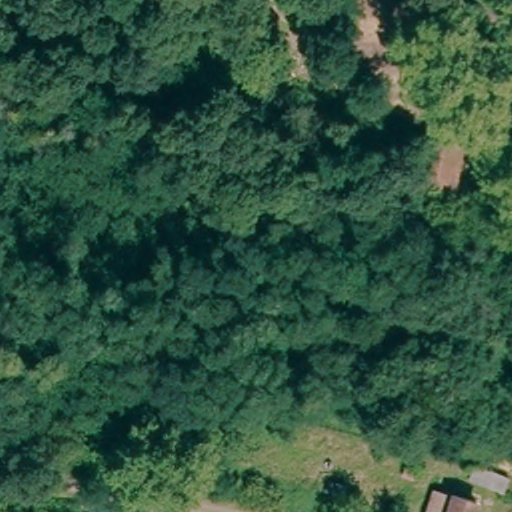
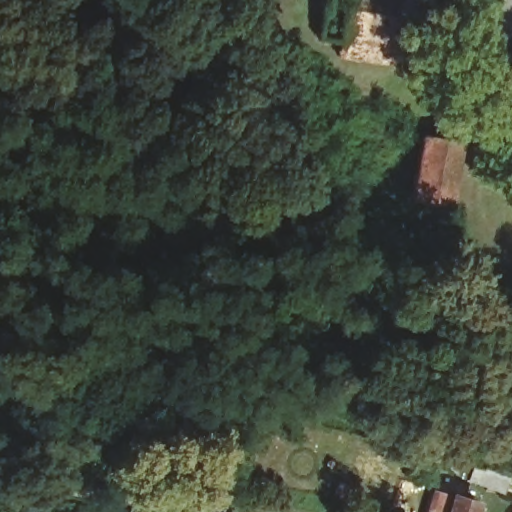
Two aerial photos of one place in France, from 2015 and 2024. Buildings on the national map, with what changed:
unchanged [(297,25),(330,29),(336,0),(412,0),(411,8),(405,67),(343,64),(324,52),(287,48),(297,25)]
unchanged [(460,70),(443,84),(425,63),(443,48),(460,70)]
unchanged [(424,134),(459,139),(451,209),(416,205),(422,153),(424,134)]
unchanged [(413,474),(402,470),(405,462),(415,465),(413,474)]
unchanged [(512,485),(510,491),(481,483),(484,469),(512,477),(512,485)]
unchanged [(476,501),(473,512),(444,512),(450,493),(476,501)]

